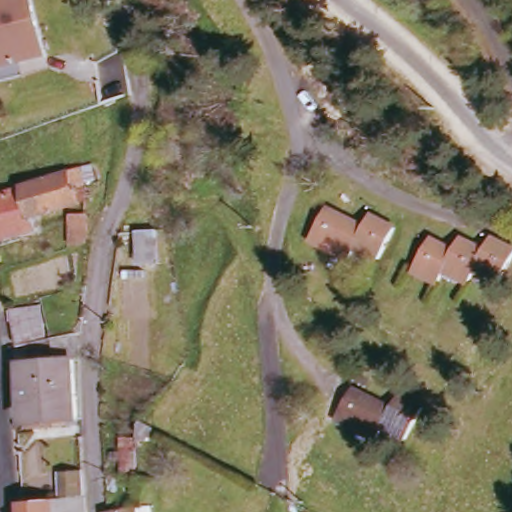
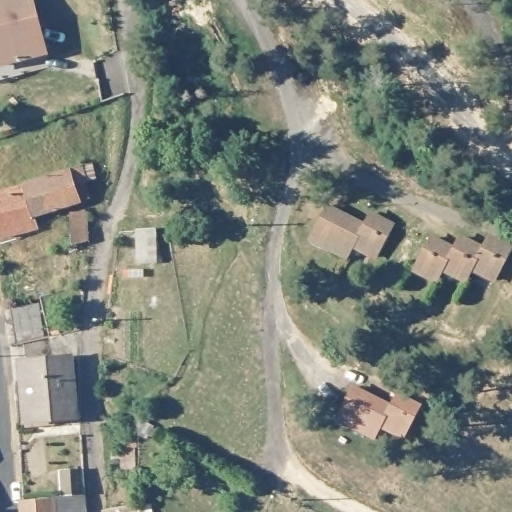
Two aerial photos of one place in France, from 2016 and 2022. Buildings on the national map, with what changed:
unchanged [(48,52),(22,59),(25,73),(0,80),(0,0),(34,0),(48,52)]
unchanged [(0,235),(0,191),(26,183),(65,169),(80,164),(83,197),(74,200),(29,216),(33,227),(0,235)]
unchanged [(388,230),(376,260),(354,251),(349,262),(310,243),(324,213),(359,230),(364,219),(388,230)]
unchanged [(81,214),(82,233),(70,234),(69,214),(81,214)]
unchanged [(451,255),(458,242),(481,253),(489,239),(512,251),(498,282),(474,271),(469,283),(446,272),(438,286),(414,273),(429,244),(451,255)]
unchanged [(14,307),(40,301),(45,338),(19,344),(14,307)]
unchanged [(33,423),(29,362),(73,358),(79,418),(33,423)]
unchanged [(423,408),(409,439),(386,428),(380,440),(341,419),(356,389),(394,409),(399,397),(423,408)]
unchanged [(143,441),(143,467),(129,468),(128,441),(143,441)]
unchanged [(64,473),(85,471),(86,495),(64,497),(64,473)]
unchanged [(87,498),(87,512),(24,512),(23,503),(87,498)]
unchanged [(145,506),(146,512),(110,512),(109,511),(145,506)]

